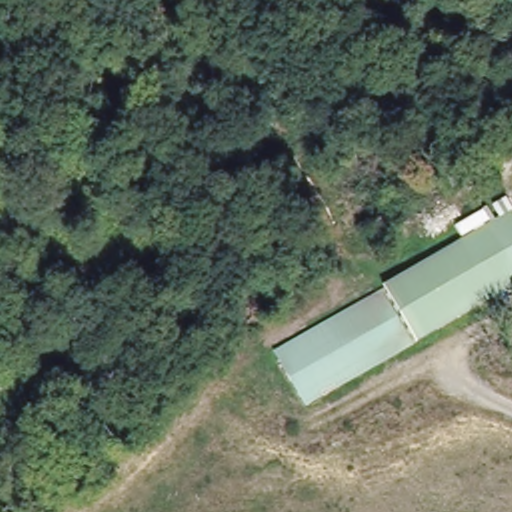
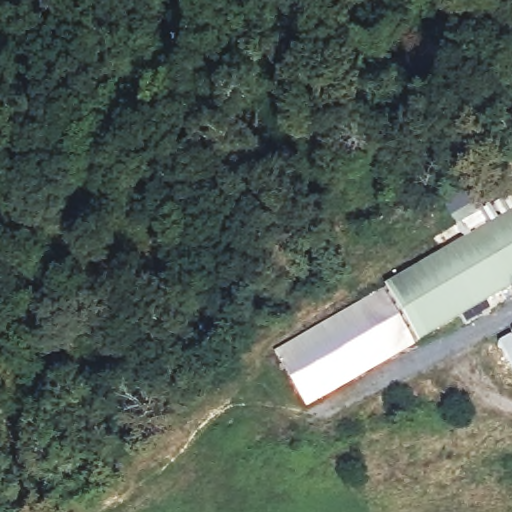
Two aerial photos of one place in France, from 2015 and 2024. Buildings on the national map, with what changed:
unchanged [(492,206),(505,197),(512,208),(512,282),(416,342),(383,289),(500,218),(492,206)]
unchanged [(307,407),(274,353),(382,288),(417,344),(307,407)]
new [(512,368),(497,342),(512,332),(512,368)]

